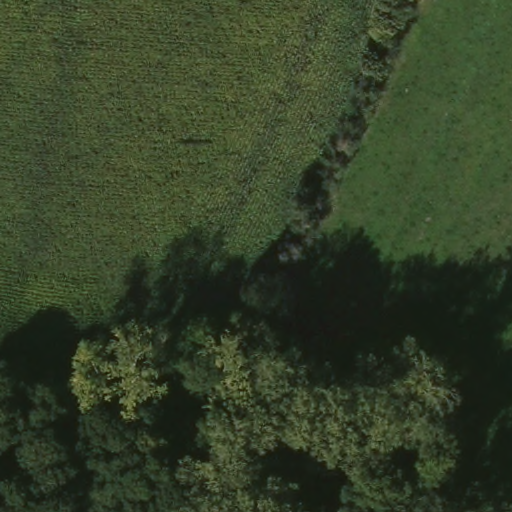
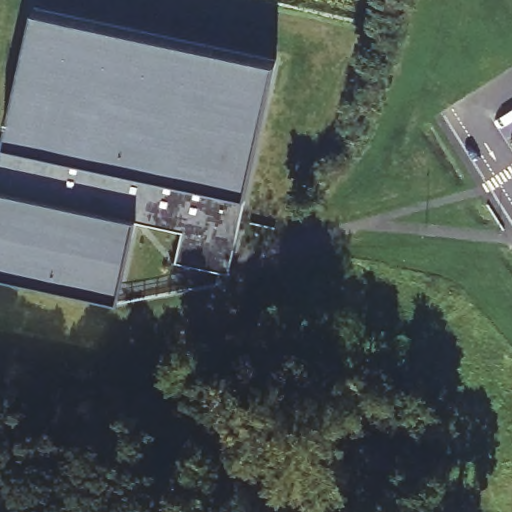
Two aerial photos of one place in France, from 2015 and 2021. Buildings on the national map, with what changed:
new [(237,53),(202,210),(190,208),(183,244),(142,234),(143,223),(99,214),(80,290),(0,273),(0,158),(34,7),(237,53)]

